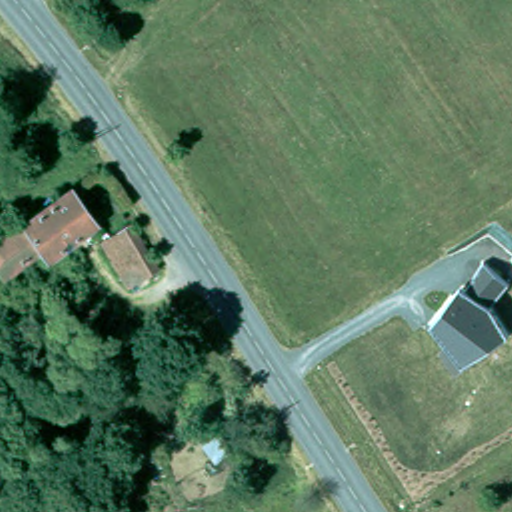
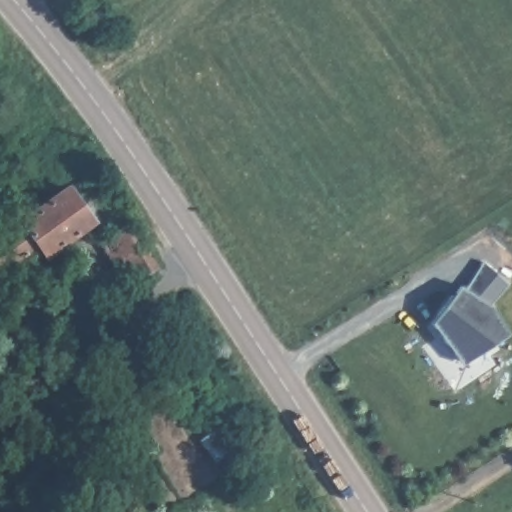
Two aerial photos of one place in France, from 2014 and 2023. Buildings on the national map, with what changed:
unchanged [(3,227),(7,232),(22,222),(69,189),(93,222),(65,241),(45,255),(38,247),(0,273),(0,230),(3,227)]
unchanged [(128,285),(115,262),(101,239),(130,222),(143,244),(157,267),(128,285)]
unchanged [(457,286),(465,293),(483,264),(508,281),(490,307),(507,335),(466,362),(432,320),(457,286)]
unchanged [(60,273),(68,266),(118,322),(110,329),(60,273)]

